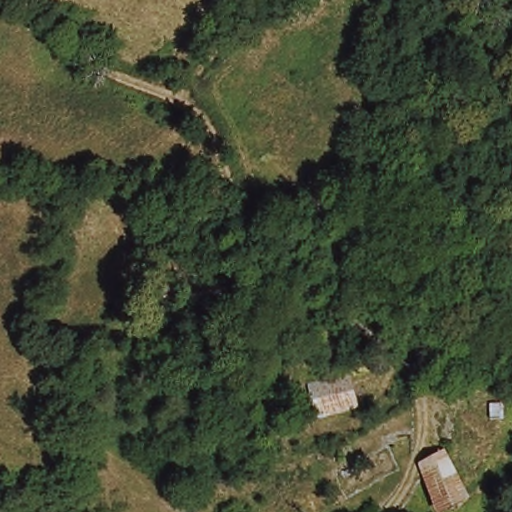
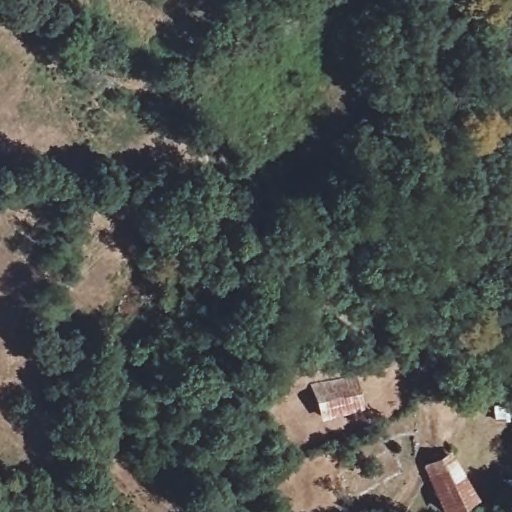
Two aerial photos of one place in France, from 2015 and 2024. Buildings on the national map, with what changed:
unchanged [(344,372),(349,372),(354,406),(321,411),(316,377),(329,373),(344,372)]
unchanged [(446,459),(460,498),(439,508),(423,470),(446,459)]

